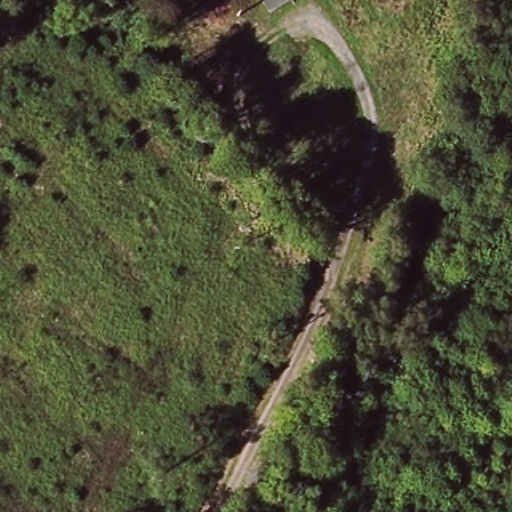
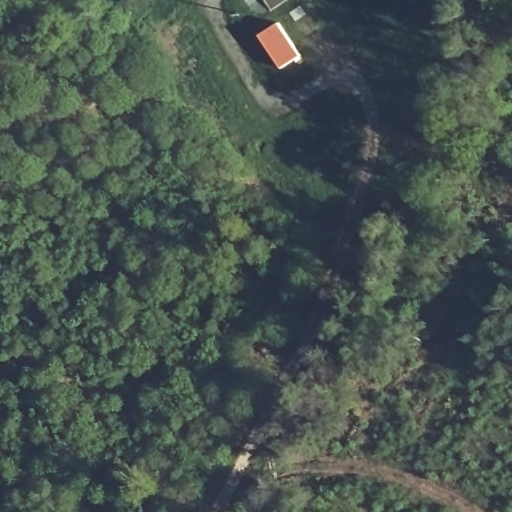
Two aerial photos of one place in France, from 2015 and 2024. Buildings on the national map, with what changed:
unchanged [(263,0),(289,0),(275,13),(263,0)]
new [(300,55),(280,67),(259,35),(278,24),(300,55)]

